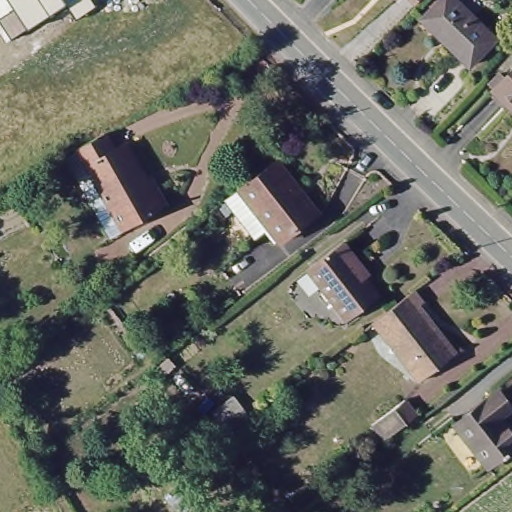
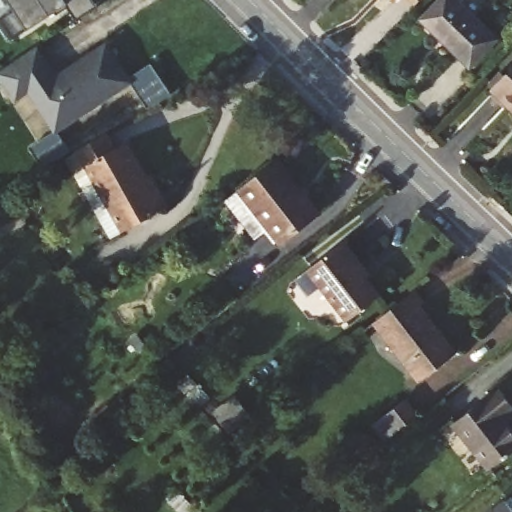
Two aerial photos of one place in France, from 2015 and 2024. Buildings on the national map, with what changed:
unchanged [(93,5),(72,18),(64,7),(28,30),(26,29),(10,40),(0,24),(0,18),(12,9),(7,0),(90,0),(93,5)]
unchanged [(495,40),(468,66),(421,20),(441,0),(454,0),(495,40)]
new [(54,135),(28,95),(15,102),(0,80),(0,71),(38,47),(56,75),(106,42),(134,82),(54,135)]
unchanged [(512,70),(512,109),(492,90),(512,70)]
unchanged [(166,203),(161,206),(160,206),(109,236),(88,201),(64,159),(74,154),(75,153),(73,150),(103,134),(112,150),(123,143),(143,178),(150,174),(166,203)]
unchanged [(281,155),(322,209),(285,239),(282,236),(278,239),(269,227),(259,235),(237,206),(223,218),(213,207),(228,195),(281,155)]
unchanged [(342,242),(357,261),(353,265),(378,296),(346,321),(306,269),(342,242)]
unchanged [(413,292),(422,304),(417,307),(455,354),(420,381),(373,323),(413,292)]
unchanged [(502,386),(512,399),(512,405),(503,411),(512,423),(512,447),(492,462),(459,420),(502,386)]
unchanged [(20,405),(11,411),(5,400),(12,395),(20,405)]
unchanged [(250,417),(228,435),(211,414),(234,396),(250,417)]
unchanged [(405,400),(416,416),(382,441),(370,426),(405,400)]
unchanged [(55,414),(39,426),(32,417),(47,405),(55,414)]
unchanged [(184,512),(178,512),(167,502),(177,492),(190,505),(184,512)]
new [(495,512),(489,512),(492,509),(495,512)]

